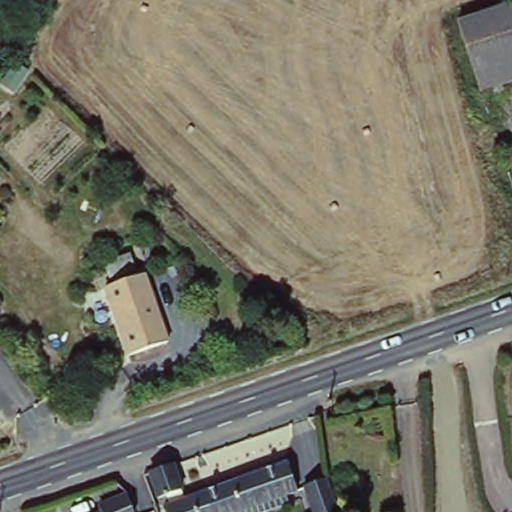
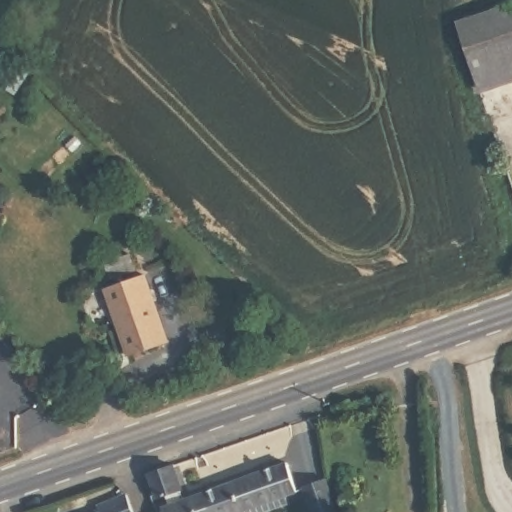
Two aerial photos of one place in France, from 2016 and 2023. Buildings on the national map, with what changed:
unchanged [(512,83),(479,95),(456,30),(512,10),(512,83)]
unchanged [(103,263),(129,254),(134,270),(109,278),(103,263)]
unchanged [(143,275),(165,343),(126,356),(104,288),(143,275)]
unchanged [(168,467),(177,494),(176,494),(180,506),(281,466),(293,497),(255,512),(159,512),(144,475),(168,467)]
unchanged [(331,512),(305,512),(298,495),(322,486),(331,512)]
unchanged [(131,512),(101,512),(100,507),(126,497),(131,512)]

